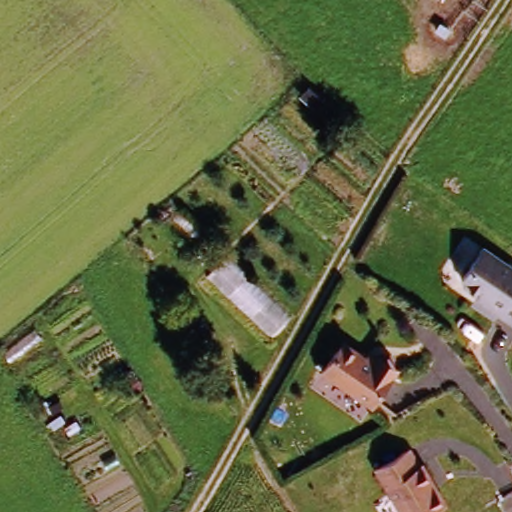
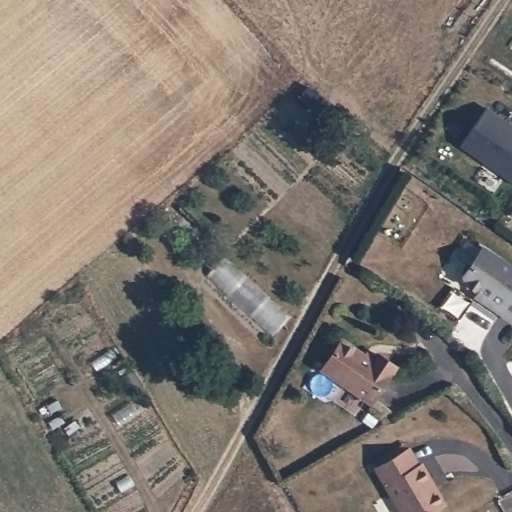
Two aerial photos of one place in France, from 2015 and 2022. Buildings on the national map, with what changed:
new [(512,127),(512,183),(460,146),(486,109),(512,127)]
unchanged [(512,315),(510,318),(482,297),(484,294),(463,278),(487,246),(512,264),(512,315)]
unchanged [(322,363),(345,336),(374,360),(376,357),(380,354),(397,368),(393,372),(367,401),(322,363)]
unchanged [(417,462),(420,460),(443,499),(420,512),(402,512),(373,465),(407,445),(417,462)]

